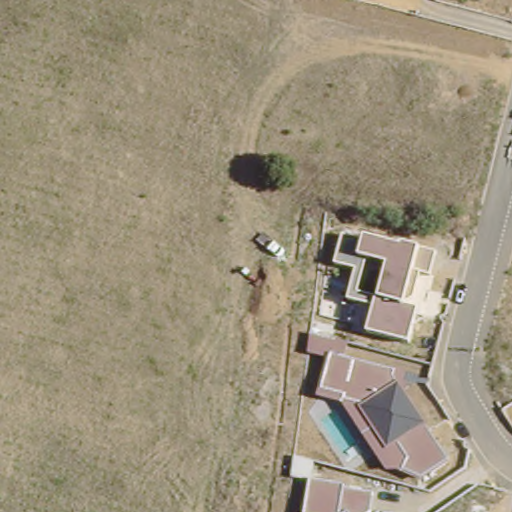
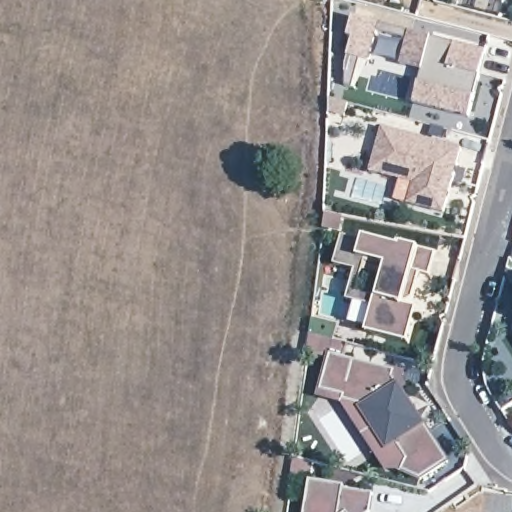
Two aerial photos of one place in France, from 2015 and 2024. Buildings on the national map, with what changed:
new [(349,15),(486,51),(469,117),(408,101),(416,69),(395,63),(402,38),(371,30),(364,60),(356,58),(349,87),(342,85),(341,63),(344,55),(343,54),(346,43),(341,41),(349,15)]
new [(346,102),(343,114),(329,111),(329,98),(346,102)]
new [(381,128),(461,148),(444,211),(408,201),(414,181),(369,169),(381,128)]
new [(326,213),(341,215),(339,224),(324,223),(326,213)]
unchanged [(374,307),(348,299),(355,269),(335,263),(343,234),(363,241),(364,236),(401,246),(401,244),(419,248),(437,253),(431,277),(421,274),(414,299),(404,305),(417,309),(409,343),(367,333),(374,307)]
unchanged [(342,402),(319,397),(328,357),(307,352),(310,333),(347,342),(344,354),(408,371),(404,392),(425,425),(449,461),(423,480),(399,471),(386,471),(342,402)]
unchanged [(310,479),(291,477),(294,455),(314,461),(312,479),(344,485),(344,489),(373,494),(371,512),(305,512),(310,479)]

